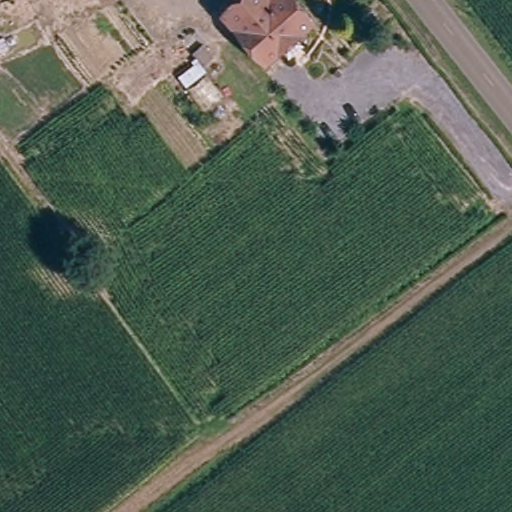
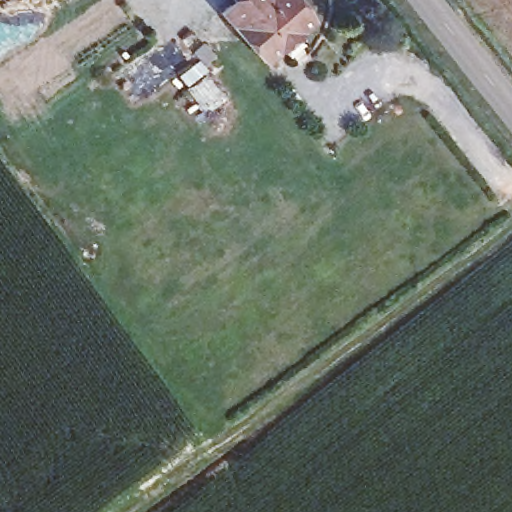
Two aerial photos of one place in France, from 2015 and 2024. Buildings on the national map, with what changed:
unchanged [(310,17),(292,35),(299,43),(285,55),(279,46),(262,61),(232,25),(220,11),(234,0),(295,0),(310,17)]

